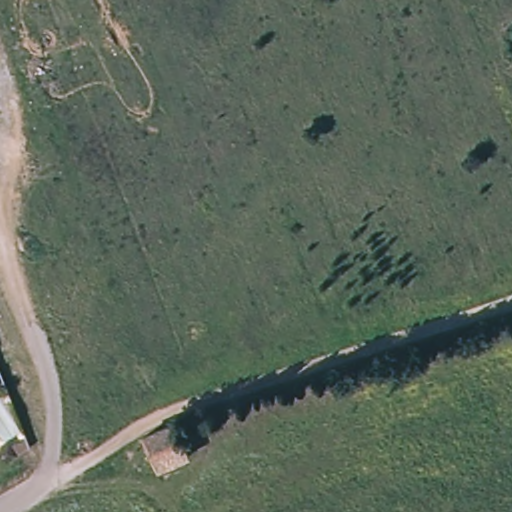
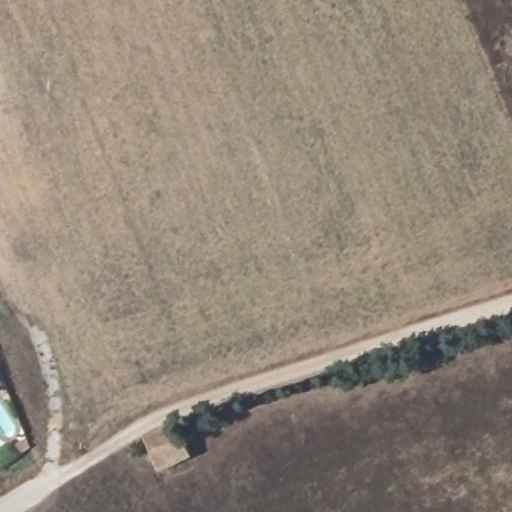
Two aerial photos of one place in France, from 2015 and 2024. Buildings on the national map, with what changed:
unchanged [(188,456),(156,469),(142,439),(175,424),(188,456)]

